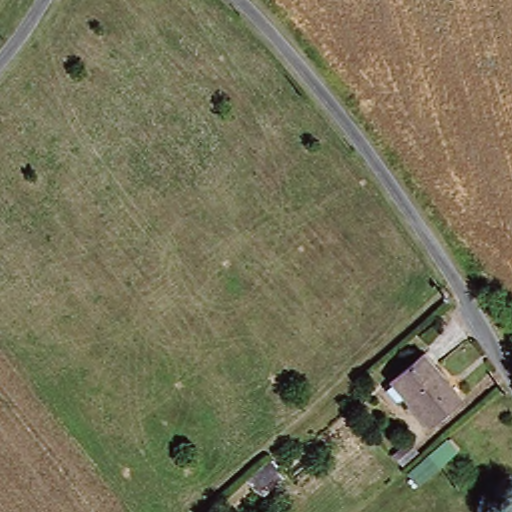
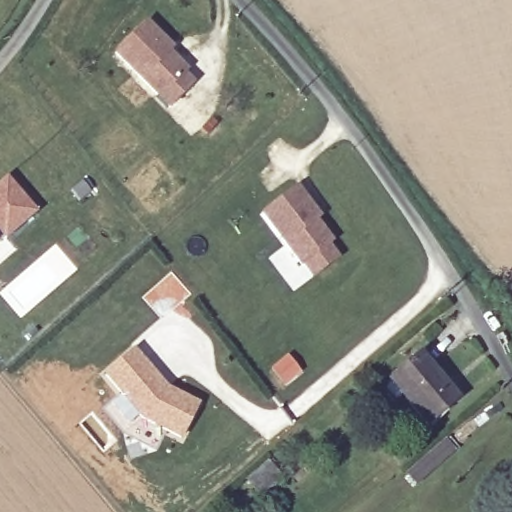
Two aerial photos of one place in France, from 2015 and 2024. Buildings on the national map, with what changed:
new [(164,41),(172,47),(168,52),(186,70),(182,72),(192,82),(169,106),(114,52),(144,22),(164,41)]
new [(4,177),(33,211),(4,237),(1,234),(0,235),(0,181),(4,177)]
new [(294,187),(311,207),(307,210),(333,240),(303,265),(261,215),(294,187)]
new [(152,374),(163,387),(195,402),(178,436),(140,417),(102,375),(131,350),(152,374)]
unchanged [(431,422),(415,400),(404,406),(393,388),(431,357),(463,401),(432,424),(431,422)]
new [(417,486),(402,468),(442,432),(458,450),(417,486)]

